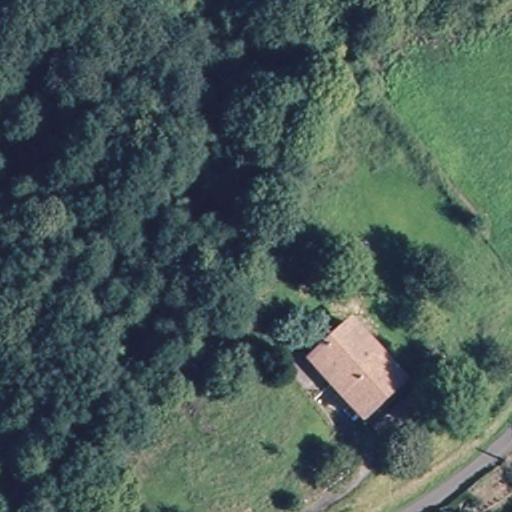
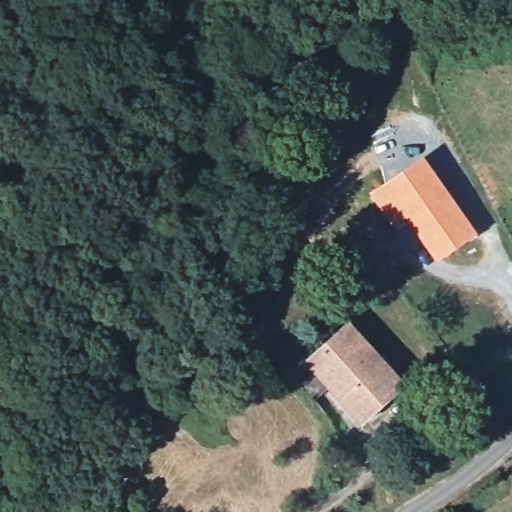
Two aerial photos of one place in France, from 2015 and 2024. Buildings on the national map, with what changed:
new [(424,153),(479,233),(436,262),(406,227),(402,231),(369,192),(424,153)]
unchanged [(349,307),(356,317),(346,325),(338,314),(349,307)]
unchanged [(406,382),(367,417),(337,385),(318,402),(290,370),(308,353),(316,362),(356,327),(406,382)]

